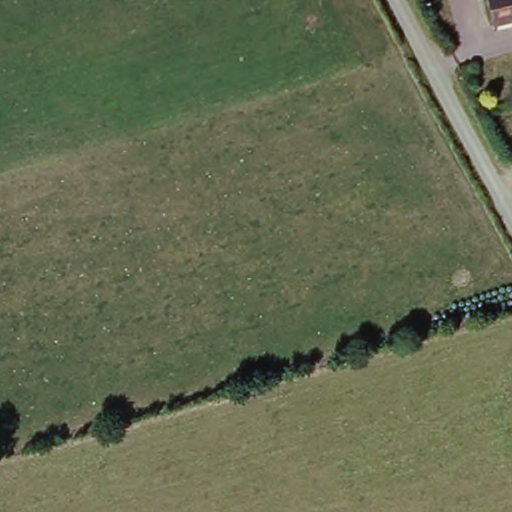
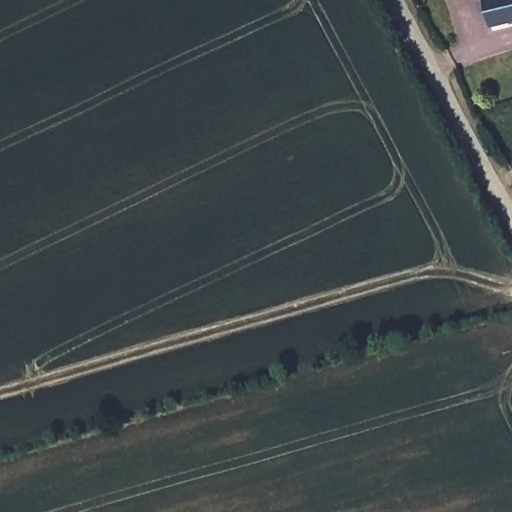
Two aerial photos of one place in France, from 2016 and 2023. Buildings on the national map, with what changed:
unchanged [(499,37),(491,0),(512,0),(512,33),(499,37)]

